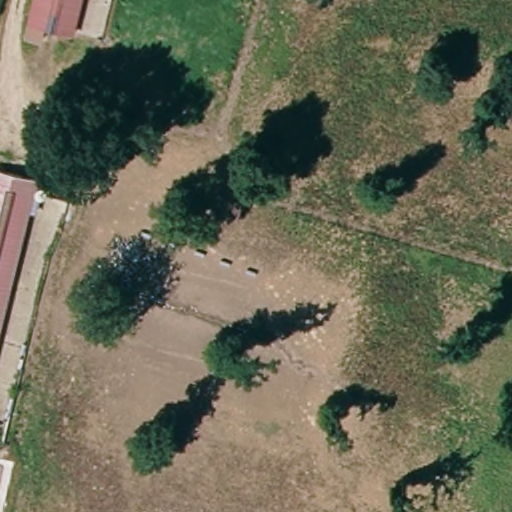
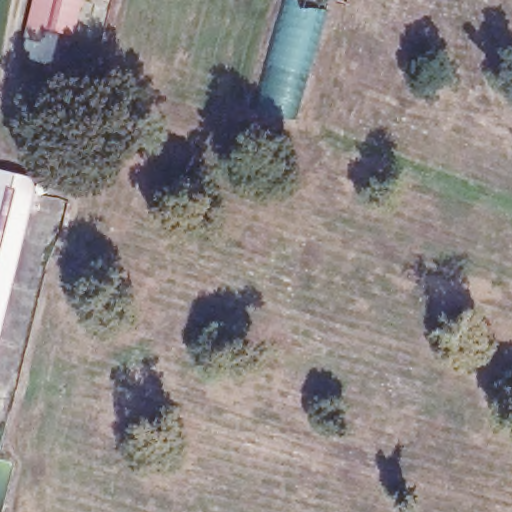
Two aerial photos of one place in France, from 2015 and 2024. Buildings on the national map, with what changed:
unchanged [(76,32),(34,20),(39,0),(84,0),(76,32)]
new [(256,110),(289,0),(308,0),(325,6),(293,120),(256,110)]
unchanged [(0,329),(0,169),(37,179),(0,329)]

